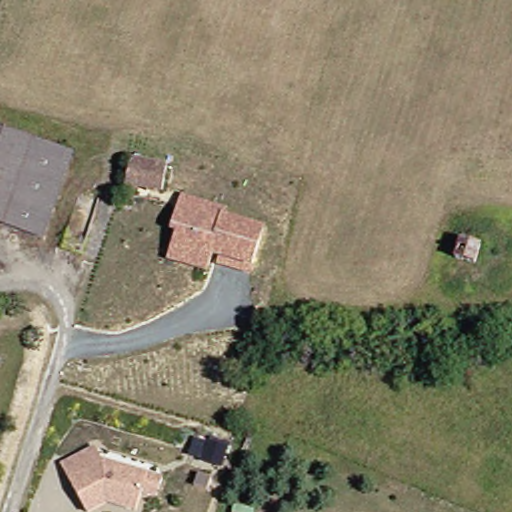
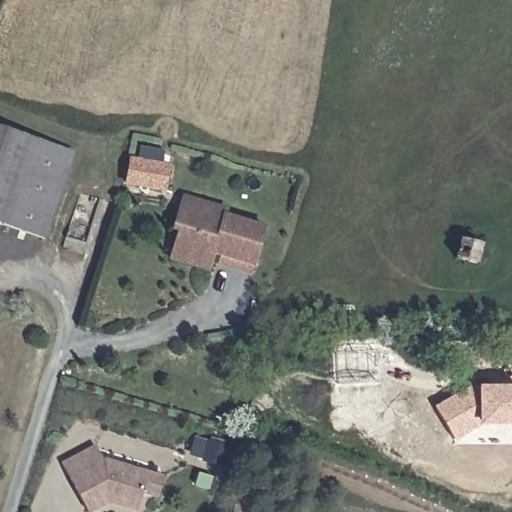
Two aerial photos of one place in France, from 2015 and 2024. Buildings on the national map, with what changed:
unchanged [(66,158),(37,240),(0,226),(0,134),(66,158)]
unchanged [(165,170),(160,189),(130,182),(134,163),(165,170)]
unchanged [(227,206),(267,218),(256,256),(216,244),(211,262),(174,251),(182,222),(176,220),(176,219),(182,202),(204,208),(225,214),(227,206)]
unchanged [(480,241),(469,263),(456,256),(466,235),(480,241)]
new [(453,445),(432,409),(471,386),(477,386),(512,387),(512,427),(478,428),(453,445)]
unchanged [(219,469),(196,462),(197,457),(188,454),(192,441),(225,451),(219,469)]
unchanged [(160,495),(145,491),(139,511),(122,506),(119,500),(111,498),(110,502),(91,512),(90,512),(65,464),(98,446),(106,459),(151,472),(165,476),(160,495)]

